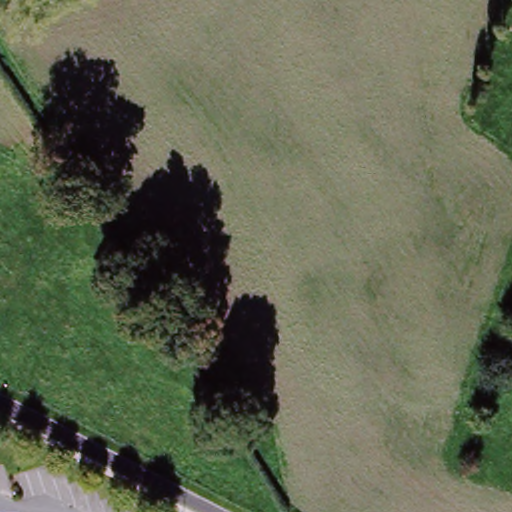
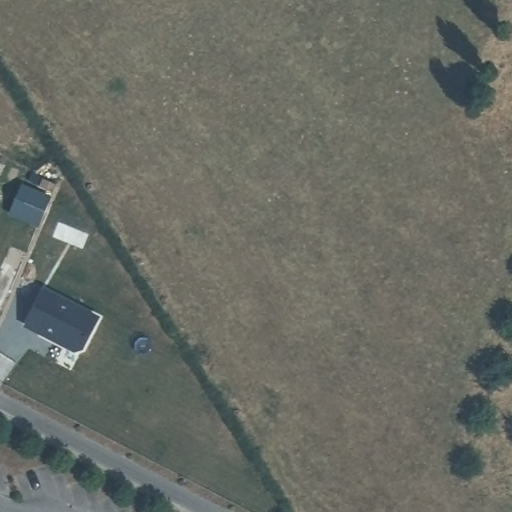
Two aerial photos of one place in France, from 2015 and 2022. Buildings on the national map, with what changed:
new [(43,288),(98,314),(83,346),(75,349),(25,325),(43,288)]

